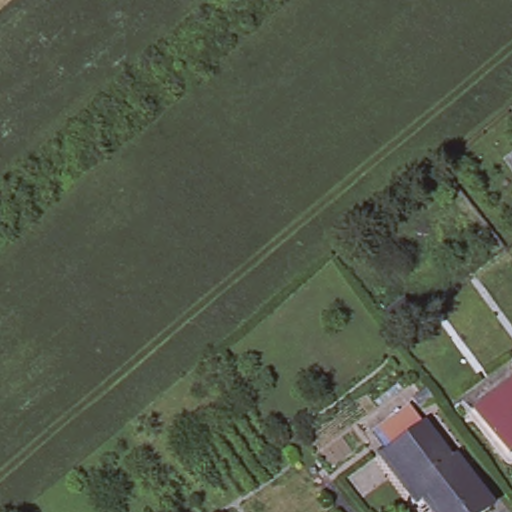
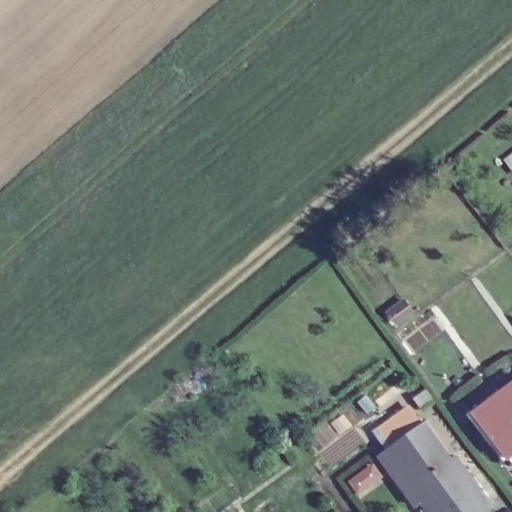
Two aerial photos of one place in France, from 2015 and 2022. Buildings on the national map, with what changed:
unchanged [(412,311),(397,323),(388,312),(404,300),(412,311)]
unchanged [(508,457),(472,412),(512,383),(512,454),(508,457)]
unchanged [(410,486),(412,485),(387,449),(384,451),(383,450),(399,438),(387,422),(405,408),(417,425),(429,416),(456,453),(460,450),(470,462),(469,463),(497,500),(480,512),(444,512),(431,493),(421,501),(410,486)]

